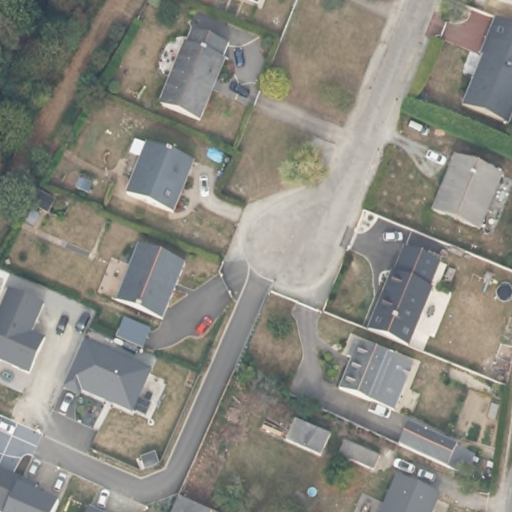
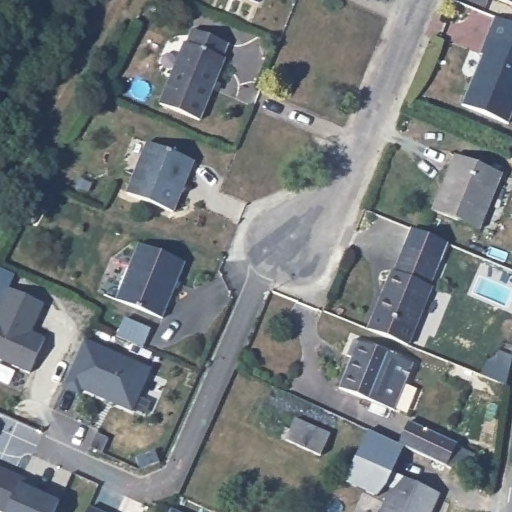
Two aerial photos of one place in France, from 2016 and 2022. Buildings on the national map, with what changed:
unchanged [(258,3),(250,0),(259,0),(258,3)]
unchanged [(497,0),(512,0),(512,6),(497,0)]
unchanged [(509,125),(462,106),(483,56),(480,55),(494,17),(512,25),(512,116),(509,125)]
unchanged [(199,121),(159,106),(184,42),(187,43),(193,29),(229,44),(223,57),(225,59),(199,121)]
unchanged [(173,212),(126,194),(148,143),(194,162),(173,212)]
unchanged [(479,230),(433,211),(455,156),(502,174),(479,230)]
unchanged [(408,336),(368,320),(392,262),(394,262),(404,237),(439,251),(429,277),(432,277),(408,336)]
unchanged [(162,319),(116,301),(139,245),(184,263),(162,319)]
unchanged [(9,288),(45,302),(33,332),(44,338),(28,372),(0,359),(0,306),(0,270),(14,276),(9,288)]
unchanged [(150,371),(131,412),(80,392),(79,396),(63,387),(83,340),(150,371)]
unchanged [(394,411),(339,389),(352,358),(347,357),(354,341),(413,365),(394,411)]
unchanged [(320,452),(286,437),(295,414),(329,430),(320,452)]
unchanged [(458,440),(448,462),(412,446),(399,440),(409,417),(458,440)]
new [(368,429),(398,443),(399,440),(406,443),(393,472),(398,475),(392,490),(387,487),(377,498),(344,485),(368,429)]
demolished [(386,452),(380,465),(344,448),(349,436),(386,452)]
unchanged [(18,486),(56,502),(52,512),(0,512),(0,470),(20,480),(18,486)]
unchanged [(382,512),(398,475),(439,493),(431,512),(382,512)]
demolished [(182,512),(175,509),(184,492),(217,507),(214,512),(182,512)]
unchanged [(98,512),(86,512),(88,507),(98,512)]
new [(178,512),(169,512),(170,508),(178,512)]

